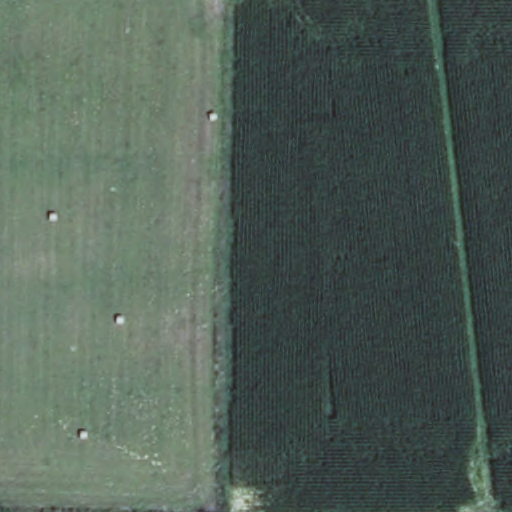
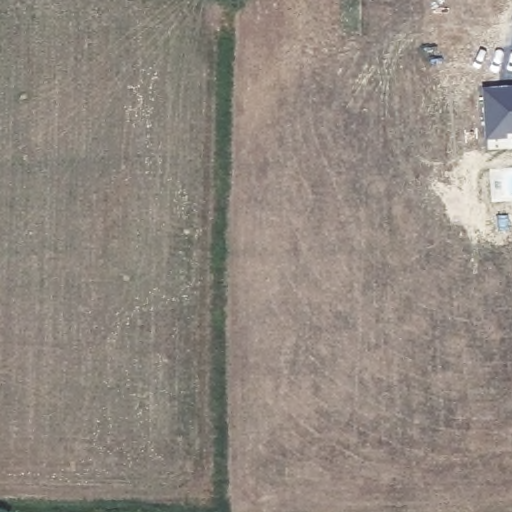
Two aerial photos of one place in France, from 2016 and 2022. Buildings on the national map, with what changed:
new [(512,130),(506,130),(506,135),(488,136),(485,88),(512,86),(512,130)]

